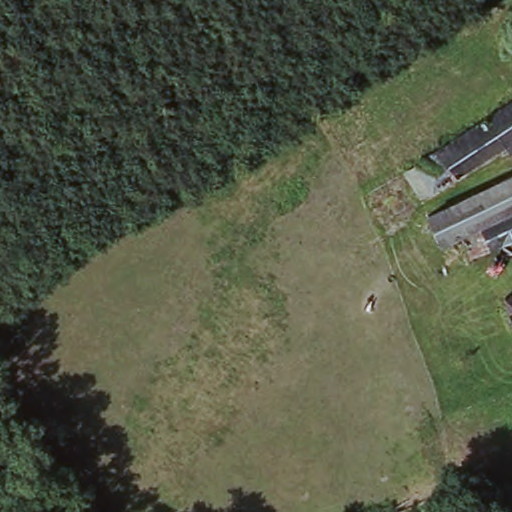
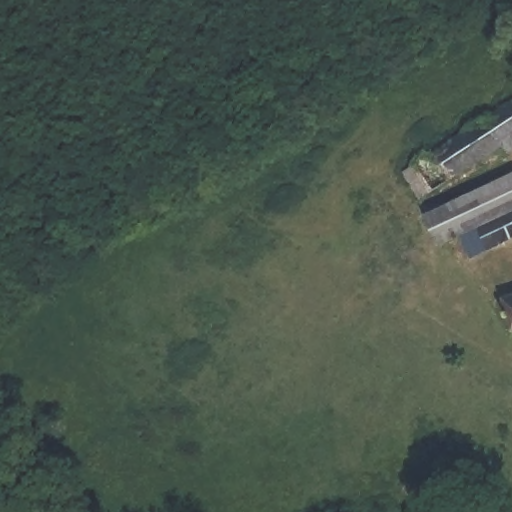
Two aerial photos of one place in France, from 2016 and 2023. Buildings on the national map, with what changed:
unchanged [(501,157),(415,207),(400,179),(512,110),(512,162),(506,162),(501,157)]
unchanged [(478,239),(438,255),(423,222),(512,180),(512,251),(485,262),(478,239)]
unchanged [(512,302),(512,332),(502,306),(512,302)]

